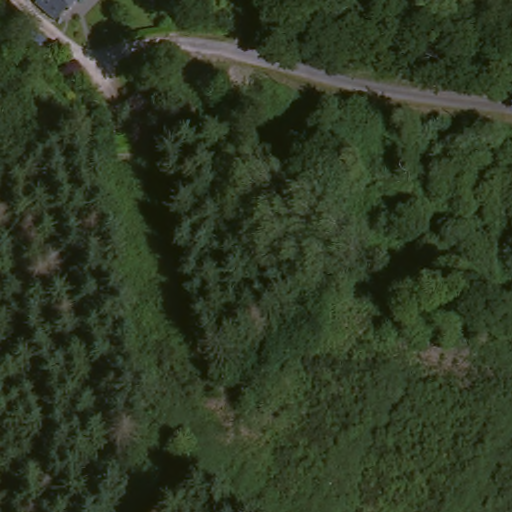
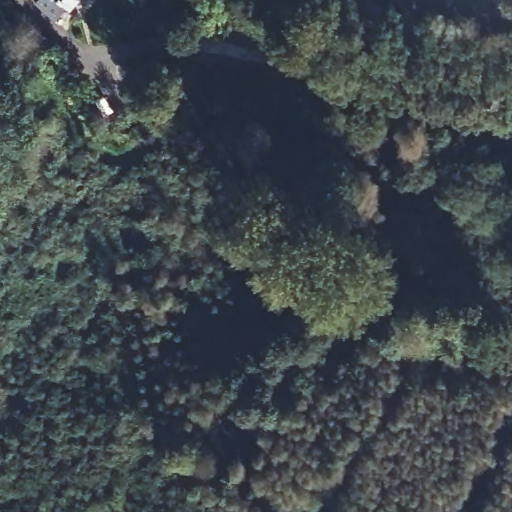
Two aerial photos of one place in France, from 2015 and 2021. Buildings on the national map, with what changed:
unchanged [(84,0),(78,9),(71,5),(61,20),(41,6),(45,0),(84,0)]

